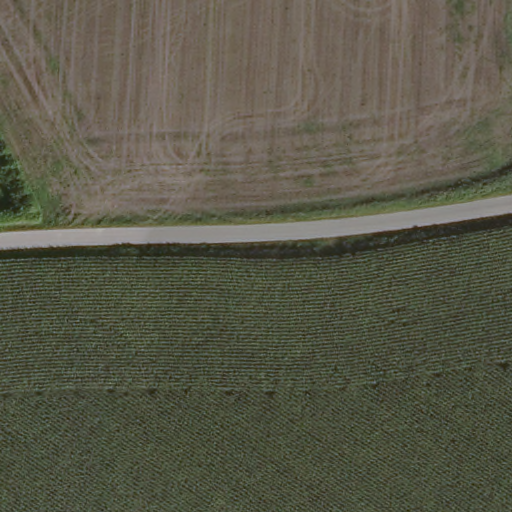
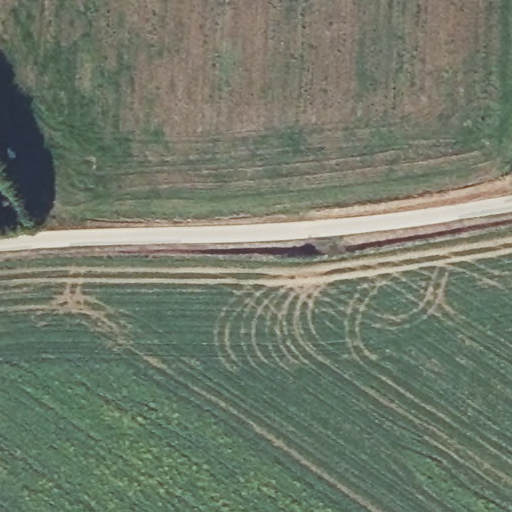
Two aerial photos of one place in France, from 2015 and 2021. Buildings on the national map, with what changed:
[]

